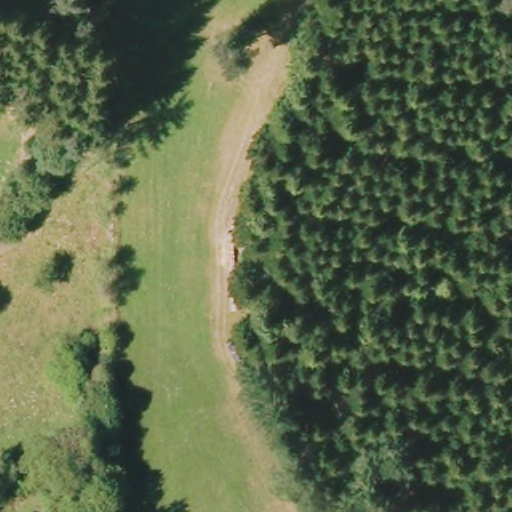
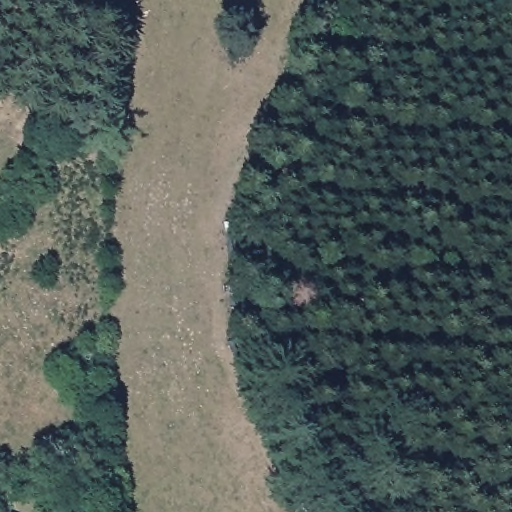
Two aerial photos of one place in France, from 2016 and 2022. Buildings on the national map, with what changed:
[]

